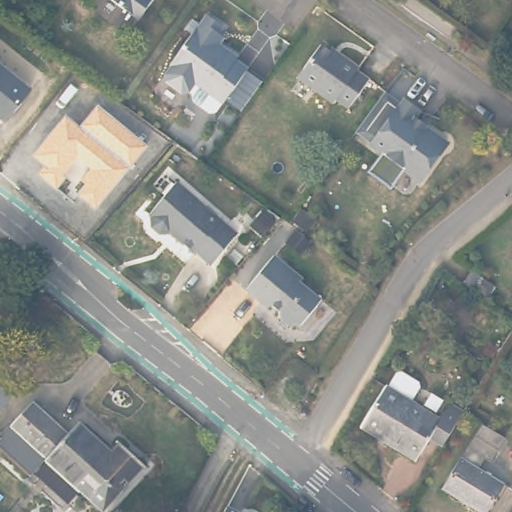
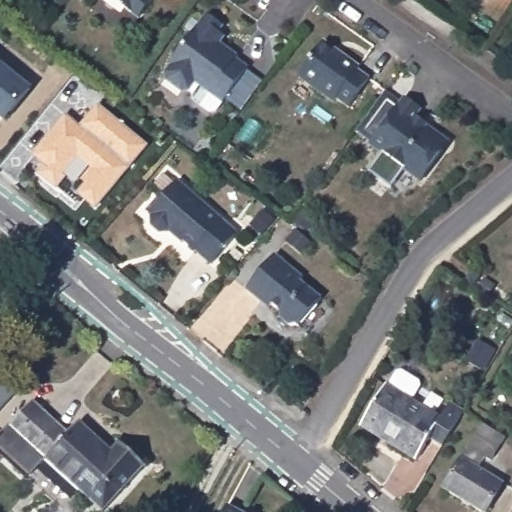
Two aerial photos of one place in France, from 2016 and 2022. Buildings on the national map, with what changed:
unchanged [(138,18),(113,0),(152,0),(138,18)]
unchanged [(164,69),(207,11),(222,22),(216,30),(221,34),(216,40),(241,61),(240,63),(251,73),(224,106),(223,106),(216,114),(210,115),(195,102),(195,96),(191,94),(185,94),(164,76),(164,69)]
unchanged [(326,45),(346,60),(349,57),(364,68),(362,71),(374,80),(353,109),(341,100),(338,104),(302,77),(326,45)]
unchanged [(2,122),(0,120),(0,68),(27,89),(2,122)]
unchanged [(408,96),(425,108),(417,118),(427,125),(430,122),(445,133),(446,147),(425,178),(375,142),(408,96)]
unchanged [(34,155),(66,113),(80,126),(99,103),(150,145),(97,210),(77,193),(85,185),(81,180),(90,168),(78,157),(65,175),(68,178),(57,189),(38,173),(45,165),(34,155)]
unchanged [(237,232),(211,263),(195,250),(194,251),(170,231),(159,232),(151,225),(150,215),(149,213),(176,180),(237,232)]
unchanged [(305,276),(302,279),(323,296),(300,324),(299,323),(291,324),(281,315),(281,308),(265,296),(262,300),(247,288),(276,253),(305,276)]
unchanged [(480,272),(472,286),(463,280),(471,266),(480,272)]
unchanged [(435,436),(420,459),(366,422),(393,383),(395,384),(403,372),(412,370),(425,379),(425,387),(416,400),(445,420),(455,402),(468,410),(455,433),(450,440),(447,445),(435,436)]
unchanged [(0,377),(17,393),(0,411),(0,377)]
unchanged [(111,445),(120,437),(130,445),(145,460),(102,505),(45,453),(28,470),(0,444),(0,432),(34,395),(68,427),(79,416),(111,445)]
unchanged [(498,441),(487,460),(485,463),(478,459),(473,469),(496,485),(481,512),(473,512),(439,490),(465,446),(477,427),(498,441)]
unchanged [(227,512),(230,505),(242,512),(227,512)]

